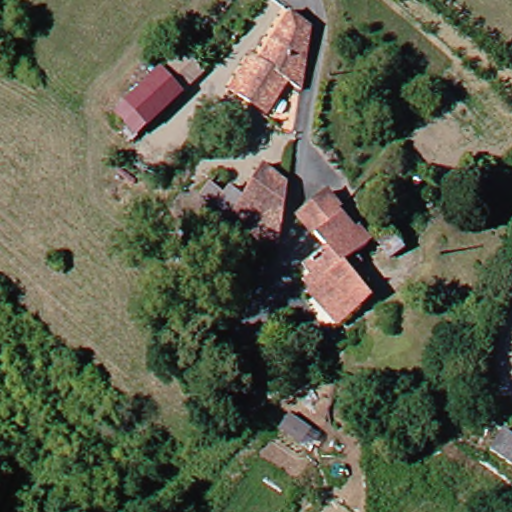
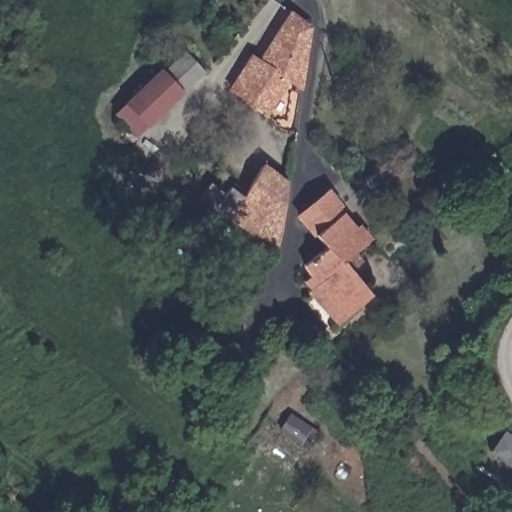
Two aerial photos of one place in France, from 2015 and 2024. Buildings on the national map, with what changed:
unchanged [(260,104),(237,90),(257,58),(265,60),(295,15),(314,23),(304,87),(291,82),(271,113),(260,104)]
unchanged [(183,94),(143,136),(121,114),(164,72),(183,94)]
unchanged [(205,200),(212,189),(226,200),(235,191),(250,200),(267,170),(294,185),(282,253),(205,200)]
unchanged [(360,230),(373,245),(343,268),(318,286),(305,269),(325,252),(314,240),(300,223),(313,210),(328,195),(345,214),(340,218),(355,235),(360,230)]
unchanged [(390,227),(376,237),(366,226),(381,215),(390,227)]
unchanged [(341,322),(314,290),(318,286),(343,268),(367,298),(341,322)]
unchanged [(499,451),(482,440),(489,426),(505,435),(512,433),(512,462),(499,451)]

